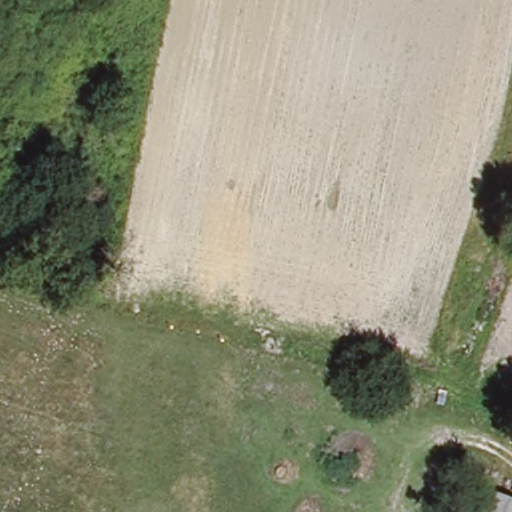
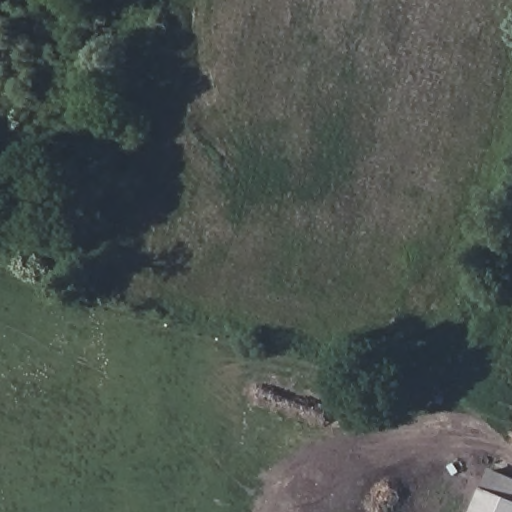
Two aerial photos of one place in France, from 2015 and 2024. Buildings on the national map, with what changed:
new [(491,467),(512,476),(512,512),(472,512),(491,467)]
demolished [(475,486),(512,496),(512,512),(468,512),(475,486)]

